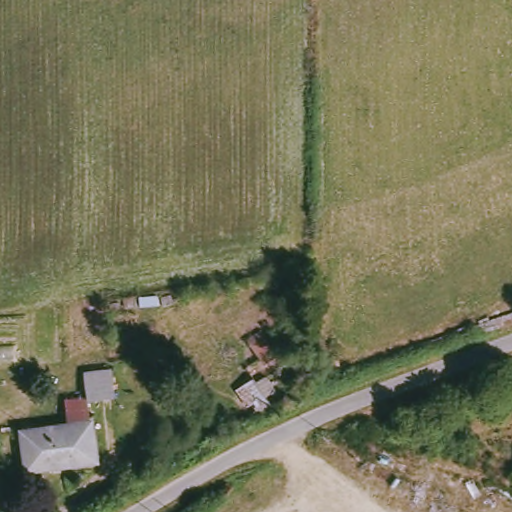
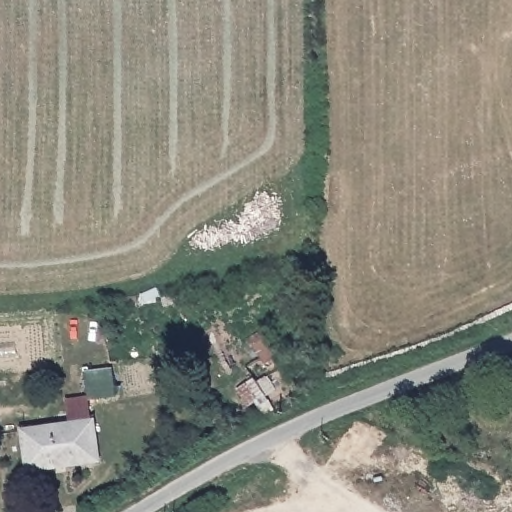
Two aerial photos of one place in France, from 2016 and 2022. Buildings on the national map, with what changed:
unchanged [(23,431),(72,422),(70,402),(92,397),(89,373),(120,367),(123,398),(97,403),(104,463),(28,472),(23,431)]

